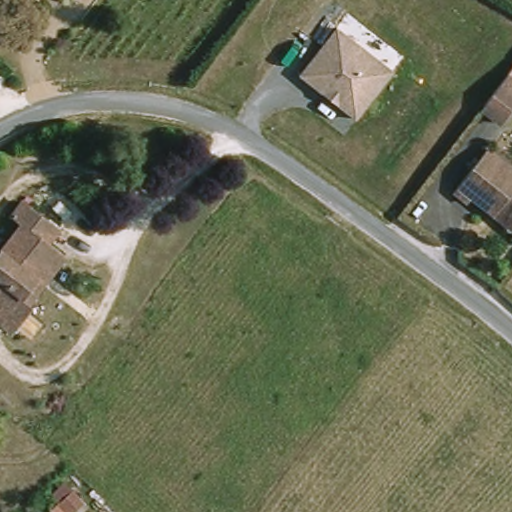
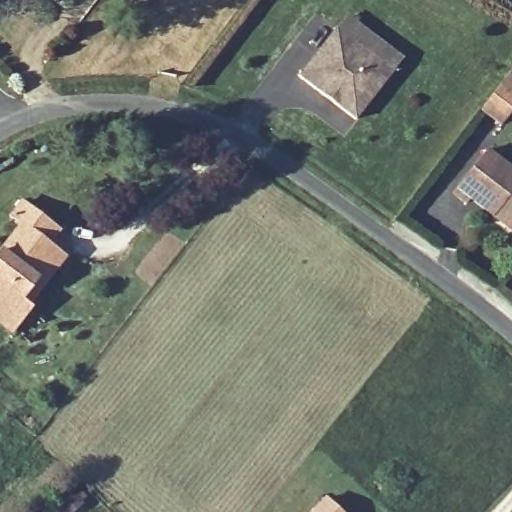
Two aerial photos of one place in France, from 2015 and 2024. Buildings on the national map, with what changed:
unchanged [(333,27),(389,70),(354,120),(296,77),(333,27)]
unchanged [(499,117),(482,103),(507,74),(512,78),(512,101),(499,117)]
unchanged [(495,215),(476,200),(468,202),(456,194),(490,150),(512,167),(512,228),(495,215)]
unchanged [(0,253),(14,235),(25,222),(13,212),(24,199),(62,229),(51,242),(61,250),(25,297),(35,305),(17,325),(0,312),(0,253)]
new [(327,498),(342,512),(313,512),(327,498)]

